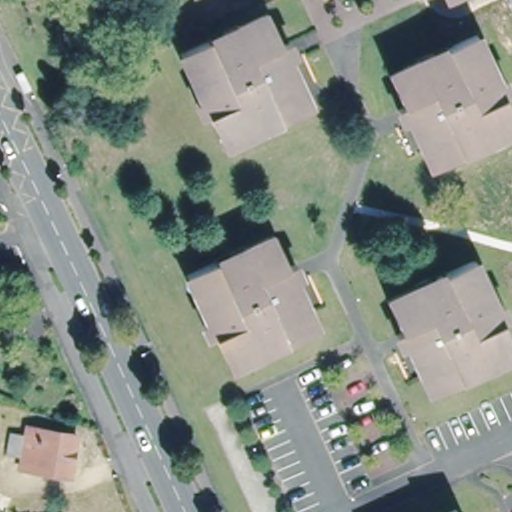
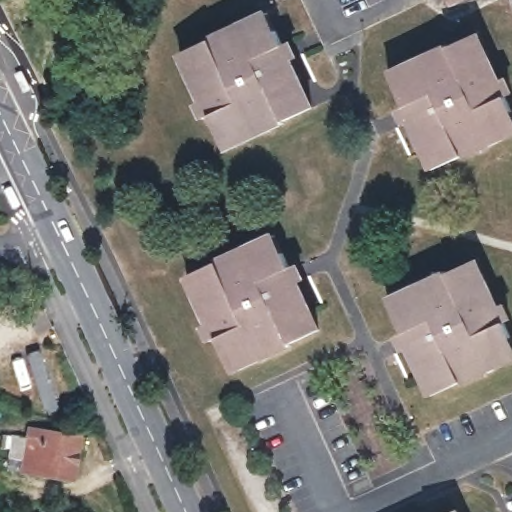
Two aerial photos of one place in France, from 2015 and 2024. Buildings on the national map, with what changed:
unchanged [(255,135),(252,130),(222,143),(180,49),(208,35),(207,31),(237,14),(241,19),(268,6),(312,102),(270,122),(271,126),(255,135)]
unchanged [(474,147),(435,166),(389,69),(417,55),(416,51),(447,36),(448,40),(477,28),(512,107),(512,129),(492,137),(495,141),(476,151),(474,147)]
unchanged [(264,357),(262,353),(232,368),(189,274),(219,258),(217,254),(249,240),(251,243),(276,231),(321,326),(280,346),(281,349),(264,357)]
unchanged [(471,373),(430,393),(387,299),(417,284),(415,281),(445,267),(447,270),(476,257),(512,339),(512,354),(488,365),(491,370),(472,378),(471,373)]
unchanged [(77,436),(70,479),(19,472),(22,458),(7,457),(11,434),(26,436),(26,429),(77,436)]
unchanged [(461,512),(451,512),(459,508),(461,512)]

